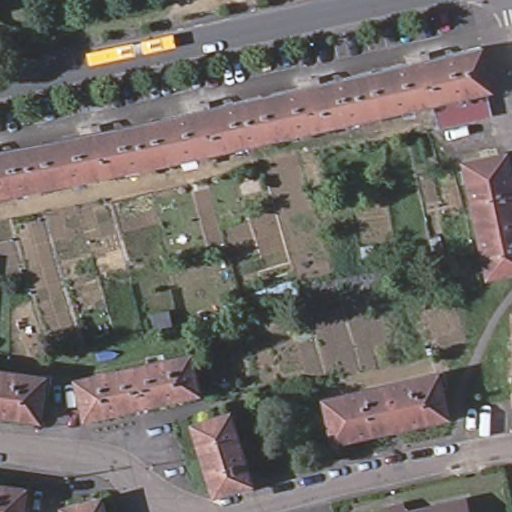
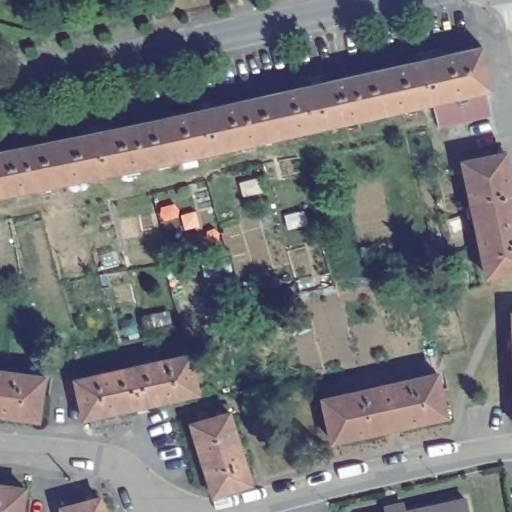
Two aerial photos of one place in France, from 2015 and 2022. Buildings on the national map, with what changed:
unchanged [(0,200),(0,152),(484,48),(490,94),(0,200)]
unchanged [(512,180),(512,276),(485,281),(459,162),(506,155),(512,180)]
unchanged [(509,311),(512,311),(512,368),(509,311)]
unchanged [(198,397),(80,426),(72,382),(191,353),(198,397)]
unchanged [(0,419),(0,371),(47,376),(40,425),(0,419)]
unchanged [(441,372),(447,421),(331,446),(321,400),(441,372)]
unchanged [(251,490),(212,500),(188,425),(229,414),(251,490)]
unchanged [(0,512),(0,485),(27,490),(23,512),(0,512)]
unchanged [(60,512),(59,508),(99,498),(103,512),(60,512)]
unchanged [(383,512),(382,506),(402,500),(406,510),(463,500),(466,512),(383,512)]

